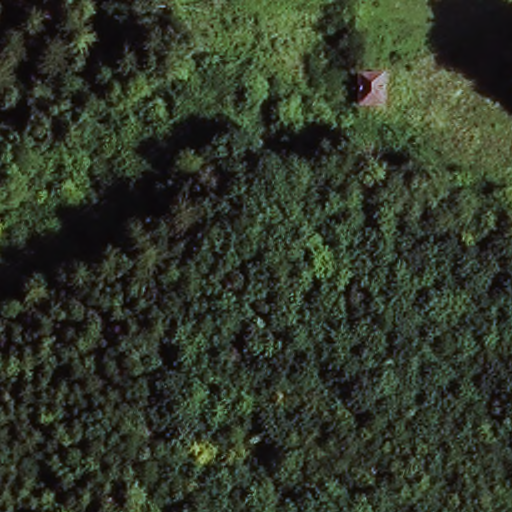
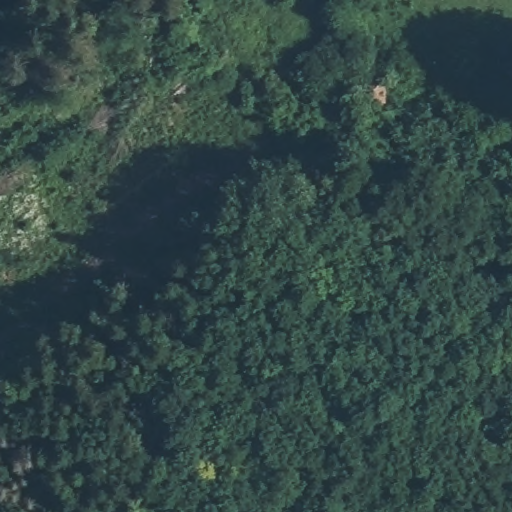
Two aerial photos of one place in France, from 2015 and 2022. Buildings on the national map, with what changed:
unchanged [(379,105),(354,105),(355,75),(379,77),(379,105)]

